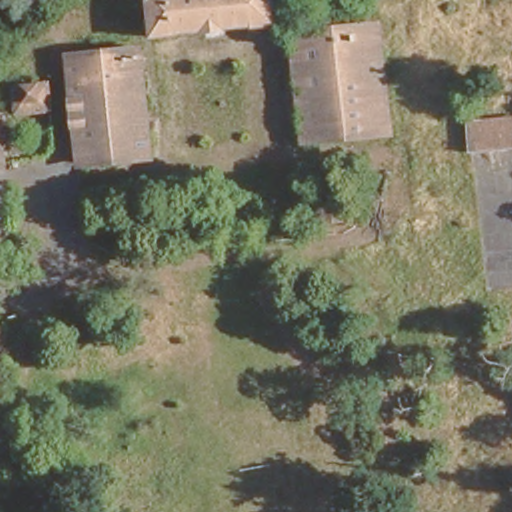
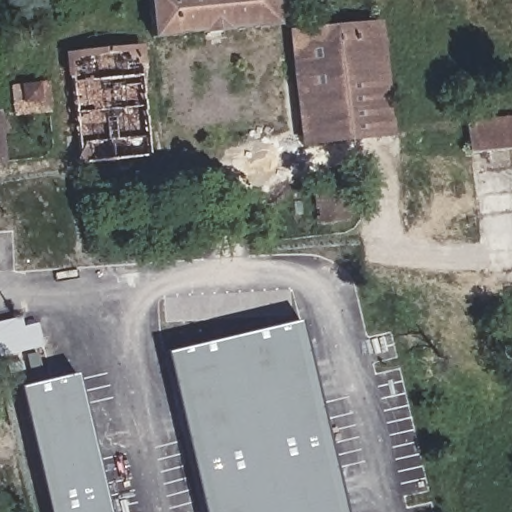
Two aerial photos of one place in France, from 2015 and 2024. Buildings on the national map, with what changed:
unchanged [(155,34),(151,0),(276,0),(278,20),(155,34)]
unchanged [(392,131),(307,141),(294,33),(379,22),(392,131)]
unchanged [(152,155),(82,163),(70,54),(140,45),(152,155)]
unchanged [(49,107),(18,110),(16,84),(47,81),(49,107)]
unchanged [(473,119),(512,115),(512,148),(477,151),(473,119)]
unchanged [(5,159),(0,159),(0,116),(5,159)]
unchanged [(313,194),(343,192),(346,222),(315,224),(313,194)]
unchanged [(300,284),(297,271),(319,267),(322,280),(300,284)]
new [(0,358),(0,321),(21,316),(24,327),(38,323),(43,346),(0,358)]
new [(299,321),(344,512),(202,512),(165,355),(299,321)]
new [(76,374),(108,512),(49,512),(20,388),(76,374)]

